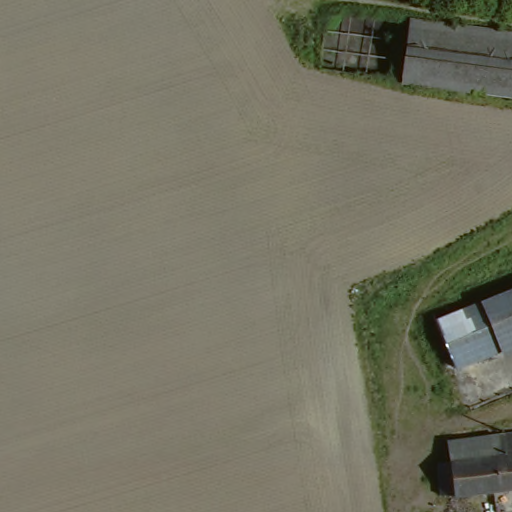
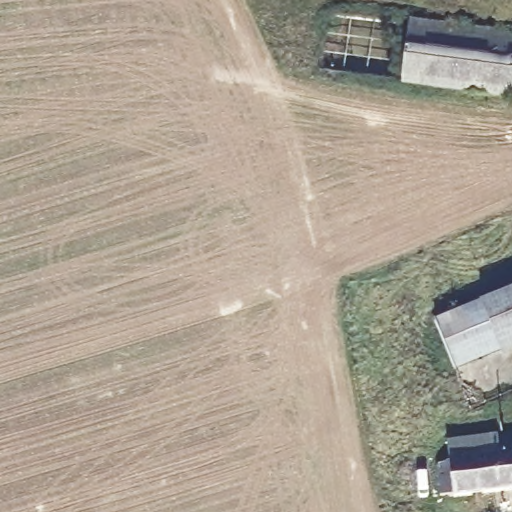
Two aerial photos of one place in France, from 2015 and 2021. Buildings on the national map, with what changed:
unchanged [(499,92),(453,85),(405,76),(415,18),(478,27),(512,34),(512,94),(499,92)]
unchanged [(468,347),(457,323),(482,311),(512,297),(512,348),(476,363),(468,347)]
unchanged [(454,491),(445,492),(439,458),(447,457),(446,438),(512,426),(512,485),(455,495),(454,491)]

